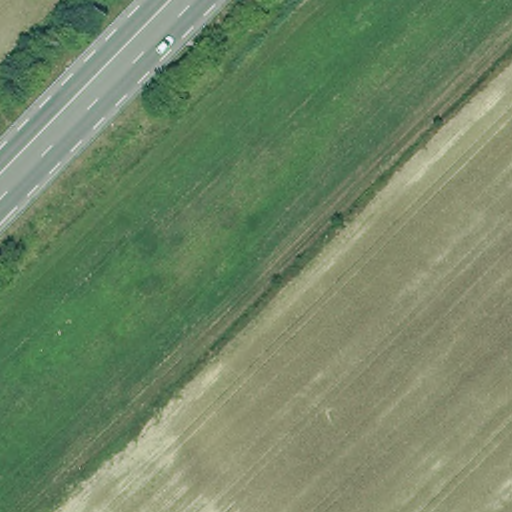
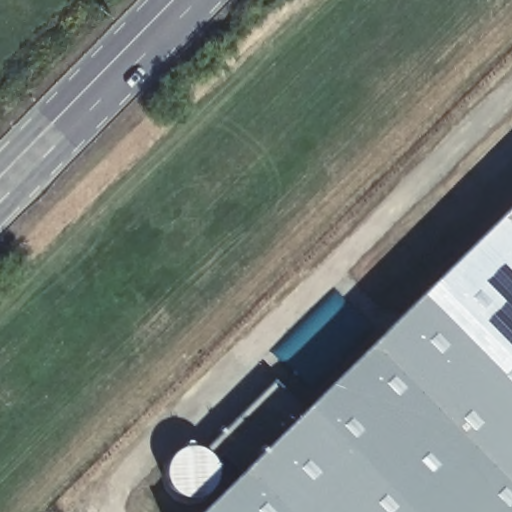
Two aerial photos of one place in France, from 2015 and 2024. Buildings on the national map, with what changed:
new [(170,512),(512,170),(512,512),(170,512)]

